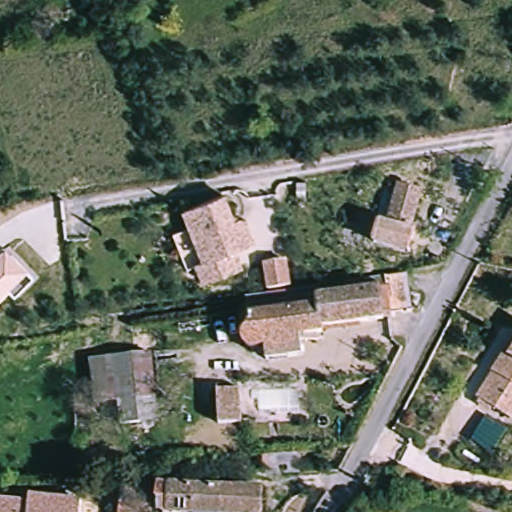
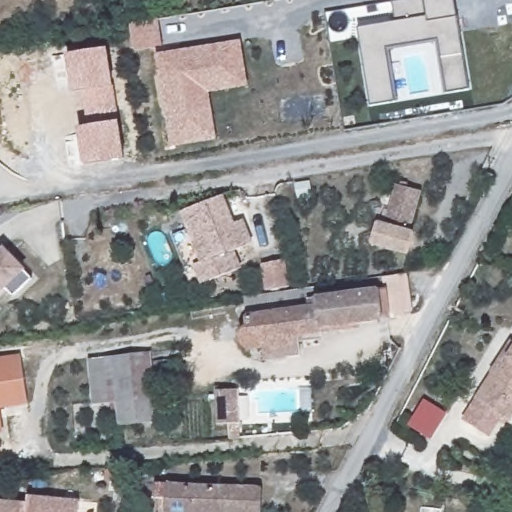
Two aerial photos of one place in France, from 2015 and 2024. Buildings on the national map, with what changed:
new [(440,59),(437,41),(386,49),(394,102),(368,106),(356,26),(394,20),(390,1),(396,0),(454,0),(457,16),(463,55),(467,79),(469,90),(454,93),(445,94),(440,59)]
new [(157,19),(161,45),(133,50),(128,24),(157,19)]
new [(238,40),(245,75),(192,84),(198,122),(166,127),(155,54),(238,40)]
new [(108,47),(123,156),(84,165),(78,128),(87,126),(81,90),(73,92),(66,55),(108,47)]
new [(198,122),(192,84),(245,75),(246,83),(206,90),(214,137),(170,145),(166,127),(198,122)]
unchanged [(415,195),(406,230),(411,231),(404,254),(366,243),(372,220),(366,219),(370,203),(388,208),(393,189),(415,195)]
unchanged [(231,222),(240,219),(249,241),(239,245),(230,249),(236,266),(198,281),(191,262),(198,260),(180,209),(220,194),(231,222)]
unchanged [(27,268),(32,276),(15,295),(8,291),(0,300),(0,250),(5,246),(27,268)]
unchanged [(285,260),(290,286),(269,290),(264,263),(285,260)]
unchanged [(358,320),(359,326),(305,334),(306,336),(282,340),(286,360),(249,365),(247,353),(246,348),(240,349),(240,350),(238,350),(238,351),(237,352),(236,352),(236,353),(234,353),(233,353),(231,353),(230,353),(228,352),(227,352),(226,351),(225,350),(224,348),(223,347),(223,346),(223,345),(223,343),(223,341),(224,340),(232,331),(230,315),(228,301),(294,291),(296,290),(310,288),(361,280),(370,279),(378,277),(388,276),(402,273),(410,272),(414,305),(392,308),(393,314),(358,320)]
unchanged [(503,421),(469,400),(486,373),(481,370),(496,347),(506,332),(512,336),(512,406),(503,421)]
unchanged [(153,396),(95,405),(92,388),(88,358),(106,355),(146,350),(153,396)]
new [(26,405),(0,408),(0,357),(20,354),(26,405)]
unchanged [(237,420),(215,421),(212,387),(234,385),(237,420)]
new [(151,422),(120,426),(116,402),(148,397),(151,422)]
new [(0,412),(3,434),(0,434),(0,412)]
unchanged [(114,502),(115,481),(148,482),(148,483),(148,503),(141,503),(114,502)]
unchanged [(258,490),(257,512),(159,512),(160,487),(258,490)]
unchanged [(0,501),(30,503),(30,497),(83,501),(82,512),(0,512),(0,501)]

